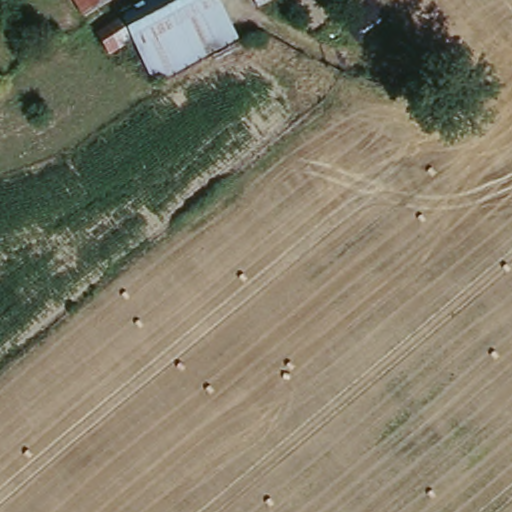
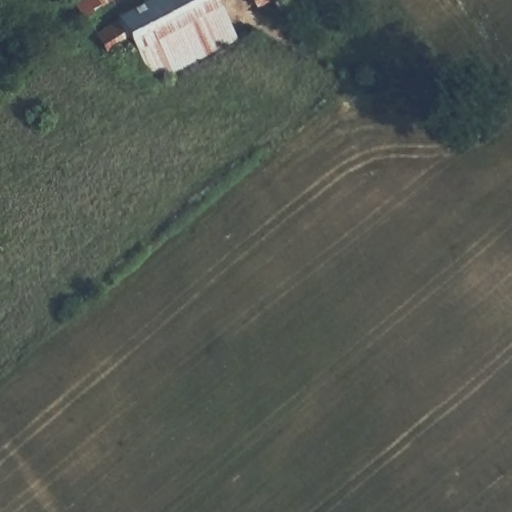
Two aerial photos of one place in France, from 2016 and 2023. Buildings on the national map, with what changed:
unchanged [(79,0),(112,0),(88,14),(79,0)]
unchanged [(133,41),(113,51),(103,35),(132,20),(131,15),(158,0),(223,0),(224,2),(138,50),(133,41)]
unchanged [(254,0),(277,0),(257,8),(254,0)]
unchanged [(243,37),(156,85),(138,50),(224,2),(243,37)]

